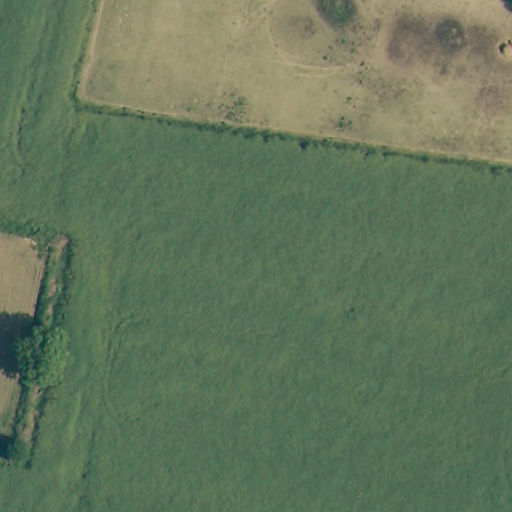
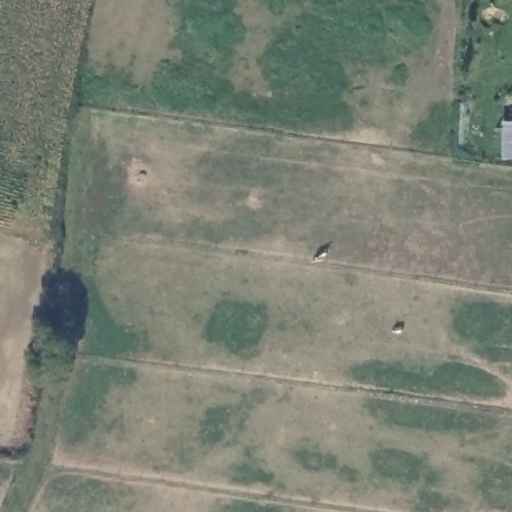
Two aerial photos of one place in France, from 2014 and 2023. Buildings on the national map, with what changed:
new [(502,124),(512,124),(512,160),(501,159),(502,124)]

